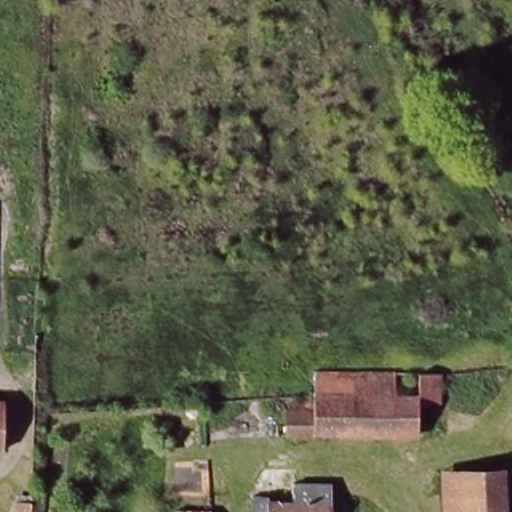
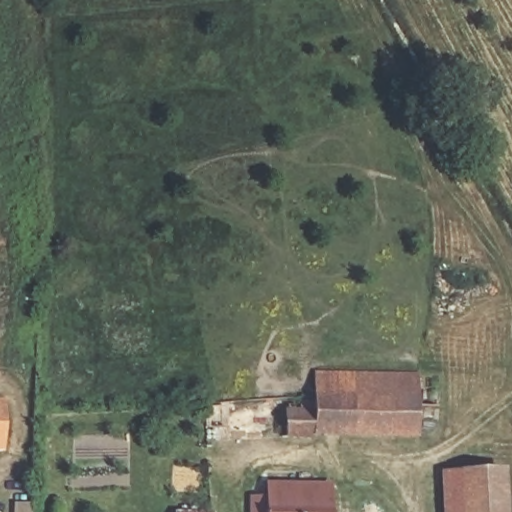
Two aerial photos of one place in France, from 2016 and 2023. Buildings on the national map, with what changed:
unchanged [(270,431),(272,403),(330,405),(332,373),(359,374),(359,381),(383,382),(397,382),(395,436),(270,431)]
unchanged [(397,382),(434,376),(432,437),(395,436),(397,382)]
unchanged [(0,408),(7,408),(5,454),(0,454),(0,408)]
unchanged [(450,474),(508,475),(507,512),(443,512),(443,474),(450,474)]
unchanged [(282,506),(281,484),(315,483),(315,505),(359,504),(359,512),(257,512),(257,507),(282,506)]
unchanged [(24,512),(0,512),(0,496),(25,497),(24,512)]

